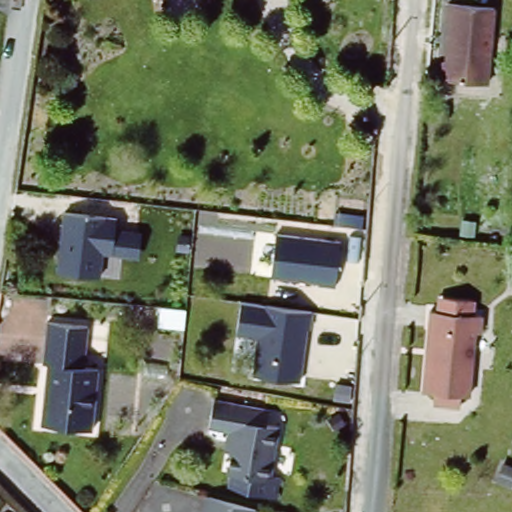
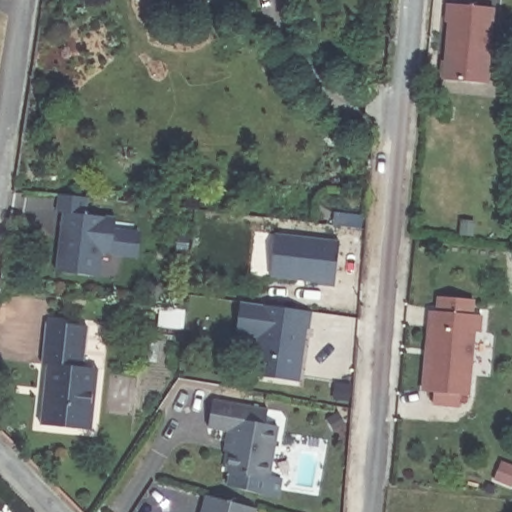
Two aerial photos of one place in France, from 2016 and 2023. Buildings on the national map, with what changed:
unchanged [(493,7),(486,84),(440,80),(442,61),(445,61),(448,22),(445,21),(447,3),(493,7)]
unchanged [(62,210),(115,216),(112,251),(101,251),(99,275),(57,270),(62,210)]
unchanged [(115,226),(141,229),(140,253),(112,251),(115,226)]
unchanged [(277,235),(340,242),(335,286),(270,277),(277,235)]
unchanged [(478,304),(477,319),(441,316),(442,301),(478,304)]
unchanged [(240,302),(307,311),(297,390),(254,382),(257,338),(235,335),(240,302)]
unchanged [(452,410),(436,408),(437,397),(430,397),(436,333),(432,333),(434,315),(486,320),(485,337),(478,337),(472,400),(465,400),(463,411),(452,410)]
unchanged [(48,366),(43,365),(48,323),(89,327),(85,368),(100,370),(93,431),(42,426),(45,405),(47,382),(48,366)]
unchanged [(231,435),(210,431),(215,405),(270,415),(268,429),(280,431),(270,485),(228,477),(232,457),(227,456),(231,435)]
unchanged [(212,501),(255,512),(211,512),(212,501)]

